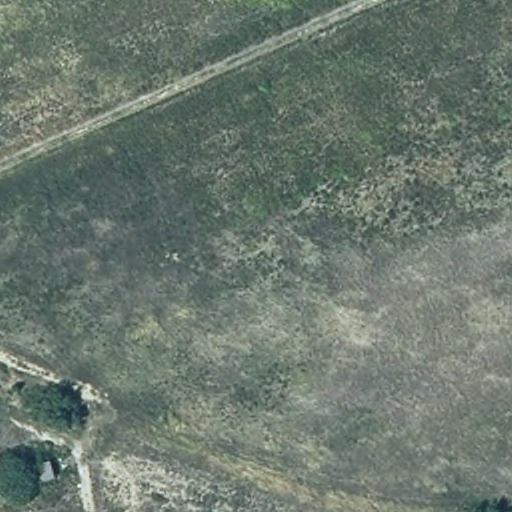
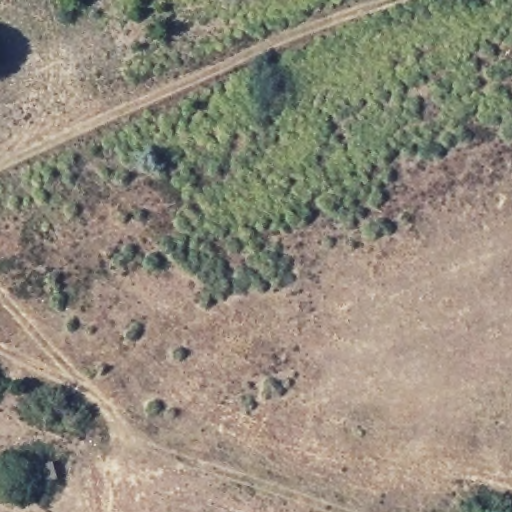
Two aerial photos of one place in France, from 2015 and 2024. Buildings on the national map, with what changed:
unchanged [(53,458),(62,487),(44,491),(40,483),(0,493),(0,475),(53,458)]

